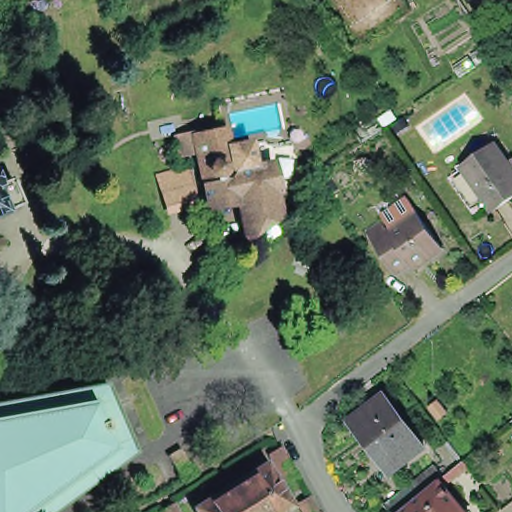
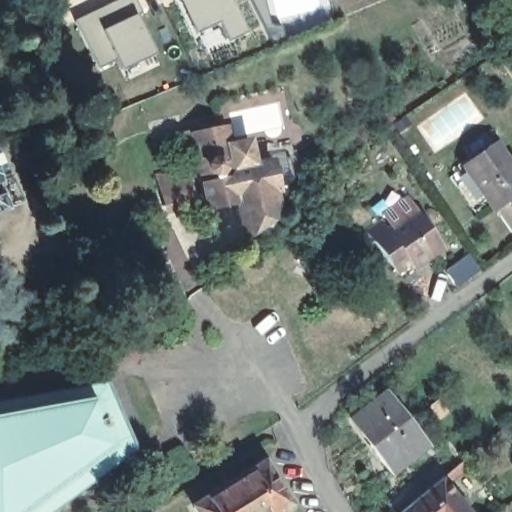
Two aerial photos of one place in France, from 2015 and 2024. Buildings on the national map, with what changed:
new [(138,0),(152,29),(144,33),(156,58),(124,72),(119,64),(102,72),(76,21),(121,0),(138,0)]
new [(230,42),(222,25),(198,35),(180,0),(234,0),(250,34),(230,42)]
unchanged [(242,209),(204,210),(193,132),(232,130),(235,145),(249,145),(250,156),(269,155),(279,215),(240,240),(242,209)]
unchanged [(512,160),(512,189),(492,202),(490,199),(476,209),(449,173),(464,163),(497,140),(512,160)]
unchanged [(15,176),(28,207),(10,214),(0,218),(0,182),(15,176)]
unchanged [(424,217),(450,253),(420,273),(417,267),(402,277),(380,246),(373,237),(387,228),(393,237),(394,237),(424,217)]
unchanged [(130,277),(144,273),(151,298),(152,302),(138,306),(124,310),(110,313),(102,285),(116,281),(130,277)]
unchanged [(102,394),(130,460),(60,512),(0,512),(0,413),(102,394)]
unchanged [(387,396),(427,448),(392,473),(354,421),(387,396)]
unchanged [(182,447),(198,471),(185,480),(169,455),(182,447)]
unchanged [(277,452),(295,479),(284,486),(267,459),(277,452)]
unchanged [(387,501),(410,482),(420,493),(434,481),(441,475),(464,456),(468,461),(445,480),(470,512),(395,512),(387,501)]
unchanged [(264,470),(290,511),(290,512),(199,512),(264,470)]
unchanged [(310,502),(315,512),(300,512),(298,510),(310,502)]
unchanged [(172,506),(176,512),(163,512),(172,506)]

